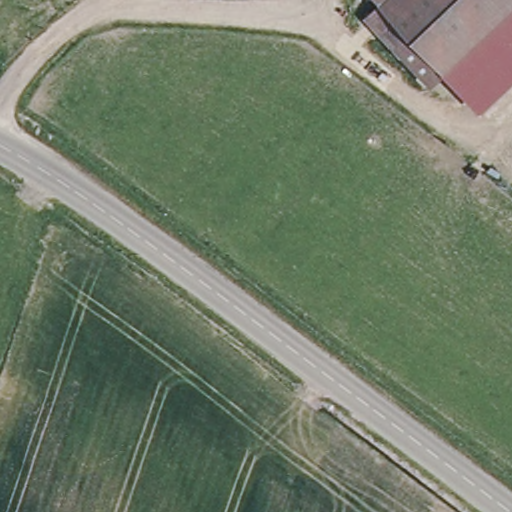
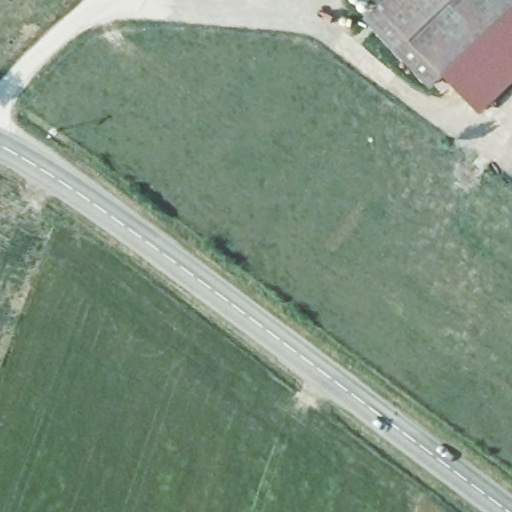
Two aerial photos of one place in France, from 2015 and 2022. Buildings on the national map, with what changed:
unchanged [(380,2),(377,0),(512,0),(512,4),(443,69),(380,2)]
unchanged [(428,84),(365,16),(380,2),(443,69),(428,84)]
unchanged [(443,69),(512,4),(512,81),(482,110),(443,69)]

